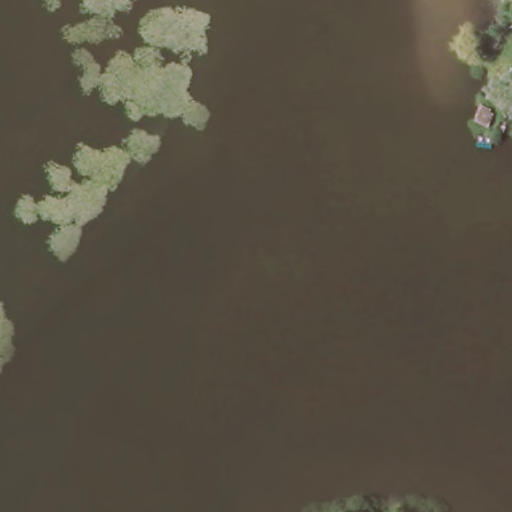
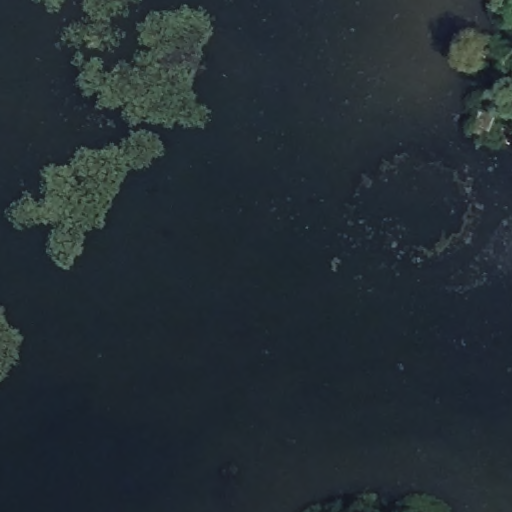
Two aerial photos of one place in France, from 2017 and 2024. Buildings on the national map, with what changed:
unchanged [(510,77),(512,79),(512,114),(497,100),(510,77)]

